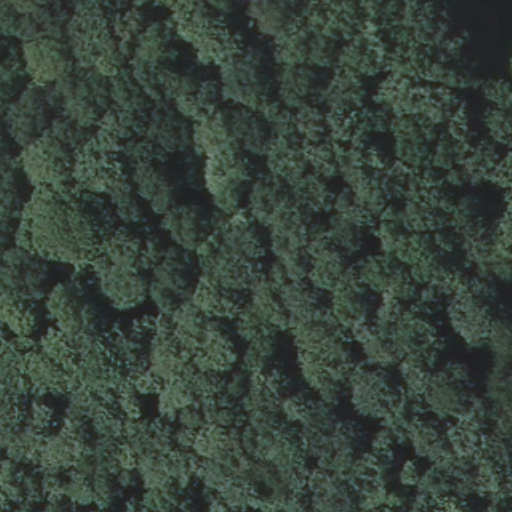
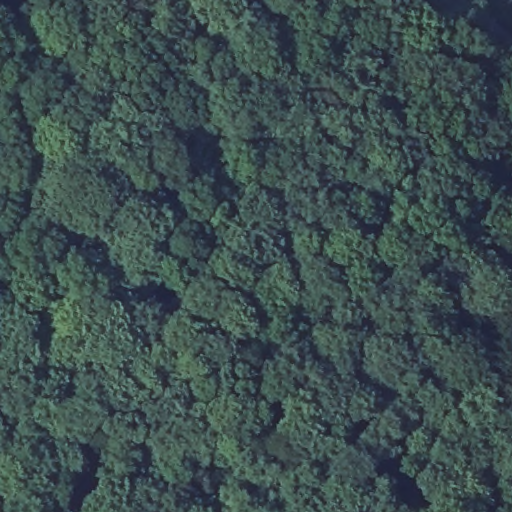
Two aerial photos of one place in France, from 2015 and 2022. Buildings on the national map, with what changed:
[]

